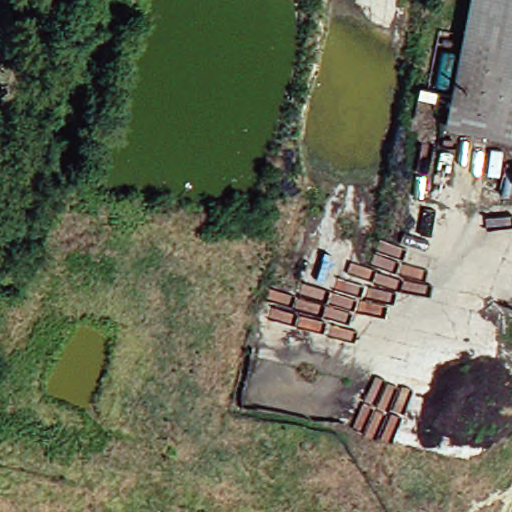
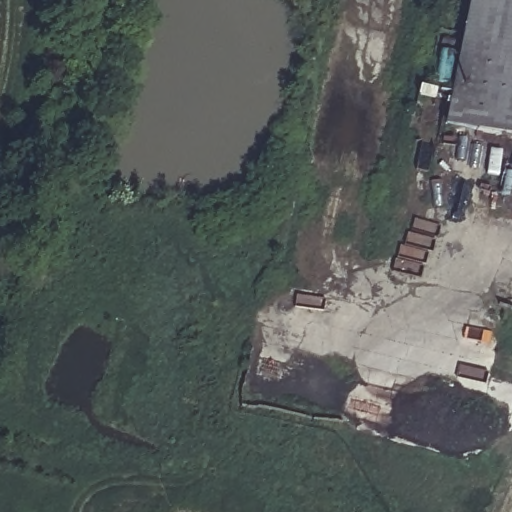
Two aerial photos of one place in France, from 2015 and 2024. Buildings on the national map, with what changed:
unchanged [(512,0),(512,135),(445,124),(468,0),(512,0)]

